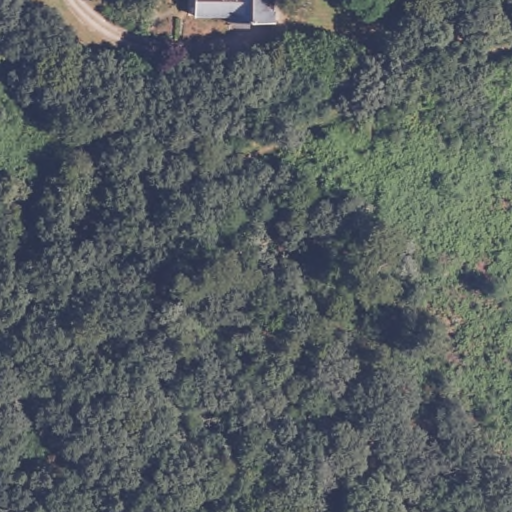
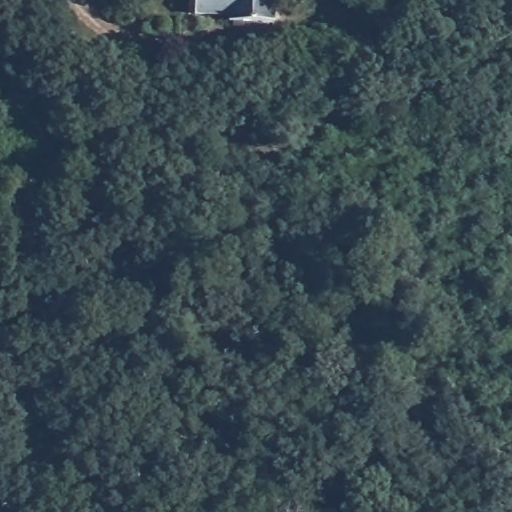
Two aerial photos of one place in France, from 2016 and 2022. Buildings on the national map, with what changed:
unchanged [(275,0),(276,17),(234,18),(232,12),(197,12),(198,0),(275,0)]

